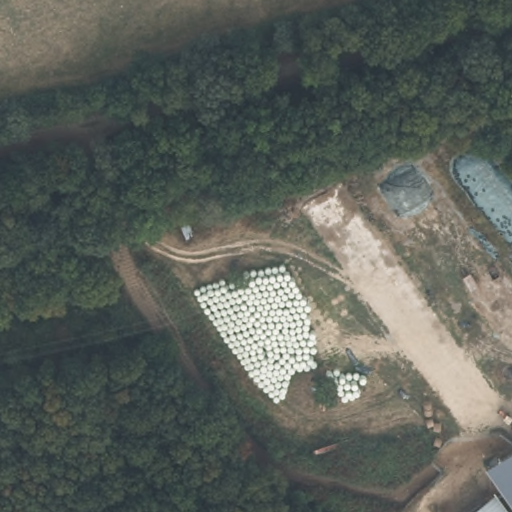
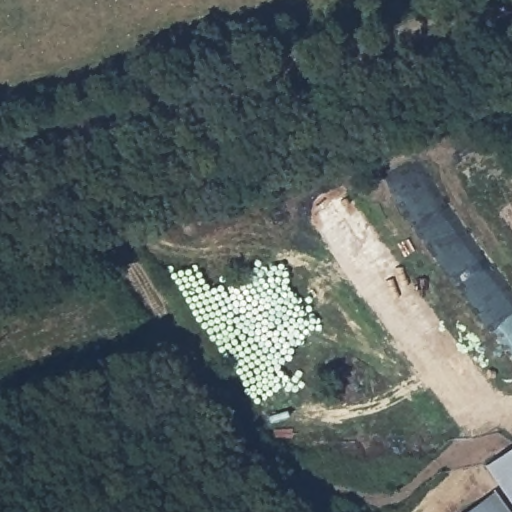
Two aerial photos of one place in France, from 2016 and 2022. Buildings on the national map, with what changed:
unchanged [(495,106),(482,115),(461,86),(476,79),(495,106)]
unchanged [(512,502),(497,481),(485,461),(512,437),(512,502)]
unchanged [(509,512),(464,512),(493,491),(509,512)]

